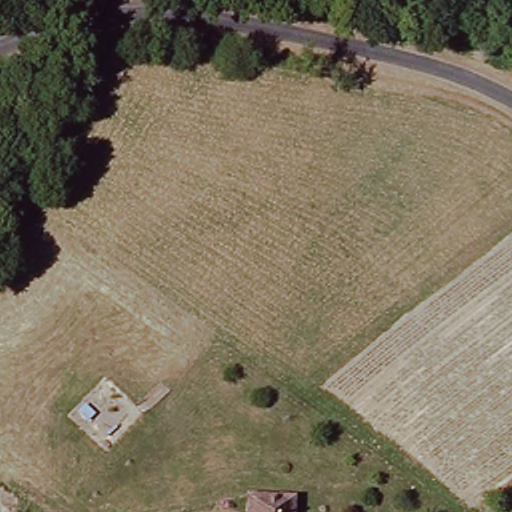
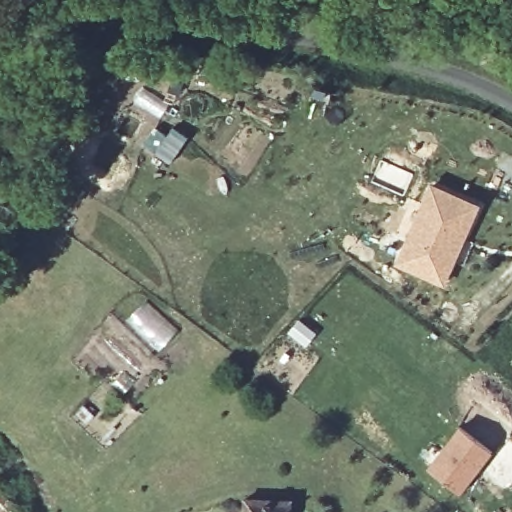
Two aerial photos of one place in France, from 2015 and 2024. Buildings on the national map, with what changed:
new [(431,184),(478,204),(444,286),(395,265),(431,184)]
new [(458,494),(426,470),(460,428),(491,452),(458,494)]
unchanged [(293,503),(293,512),(246,512),(246,502),(293,503)]

